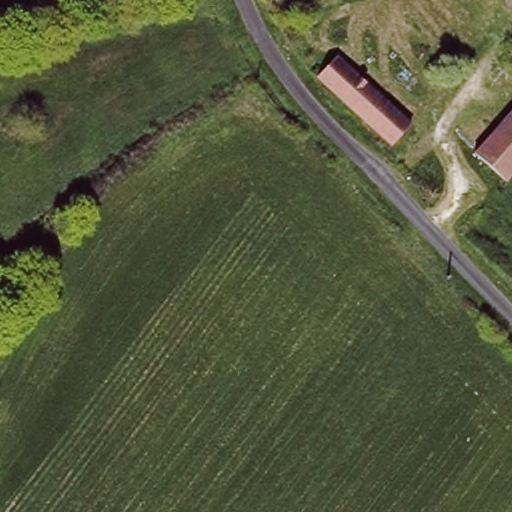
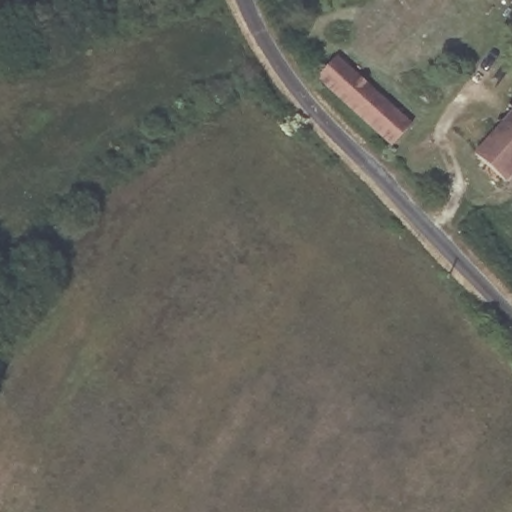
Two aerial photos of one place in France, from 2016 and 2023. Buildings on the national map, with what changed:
unchanged [(512,1),(510,0),(512,0),(512,1)]
unchanged [(415,125),(394,149),(316,81),(338,56),(415,125)]
unchanged [(512,177),(508,182),(477,155),(512,115),(512,177)]

